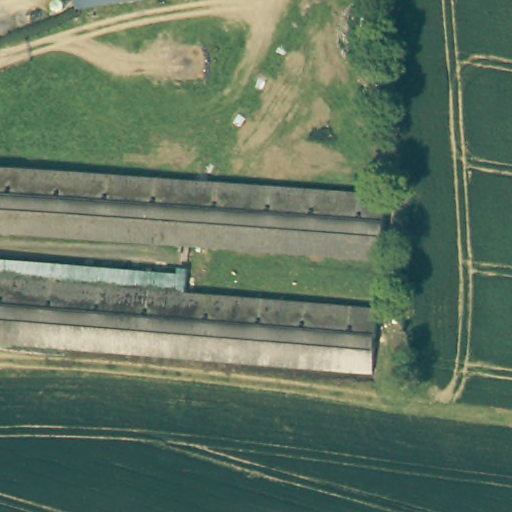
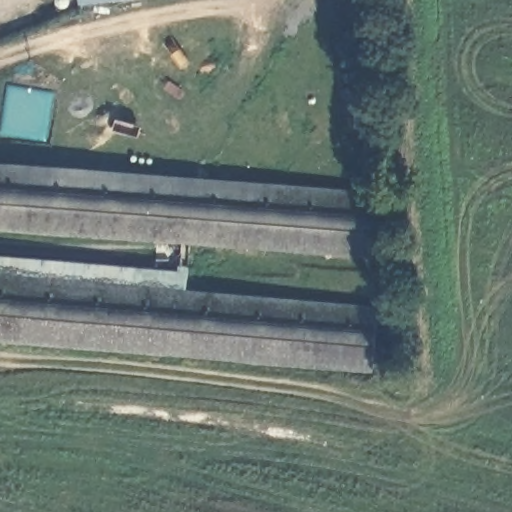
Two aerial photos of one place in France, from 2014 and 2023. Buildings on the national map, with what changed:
unchanged [(74,0),(110,0),(74,5),(74,0)]
unchanged [(0,162),(376,190),(372,252),(0,225),(0,162)]
unchanged [(180,287),(0,273),(0,257),(182,272),(180,287)]
unchanged [(367,366),(0,335),(0,273),(180,287),(372,304),(367,366)]

